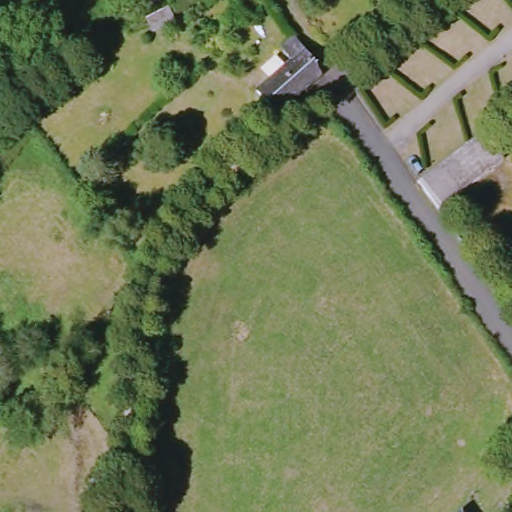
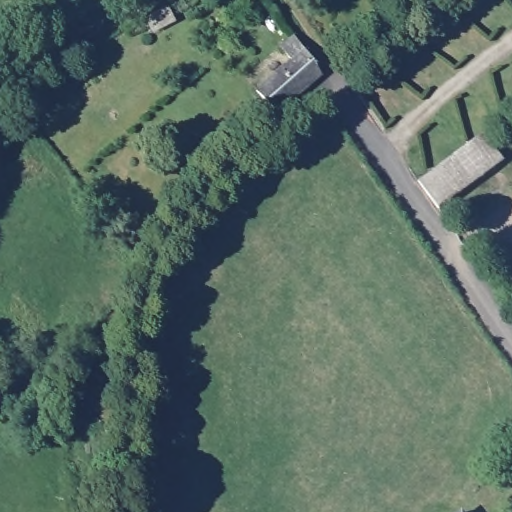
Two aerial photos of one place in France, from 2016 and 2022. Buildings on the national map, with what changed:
unchanged [(279,106),(266,89),(294,62),(283,49),(295,38),(319,69),(279,106)]
unchanged [(486,138),(504,163),(442,215),(424,188),(486,138)]

